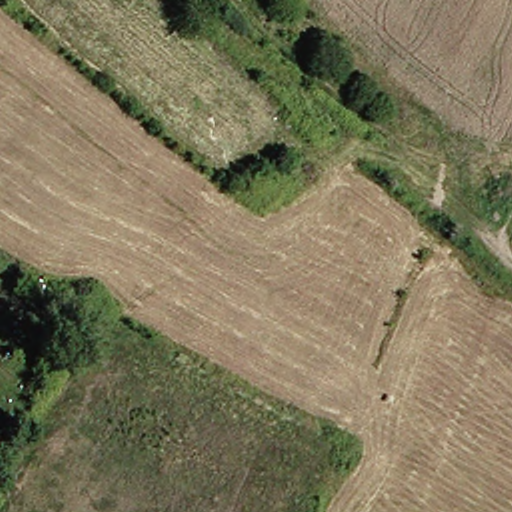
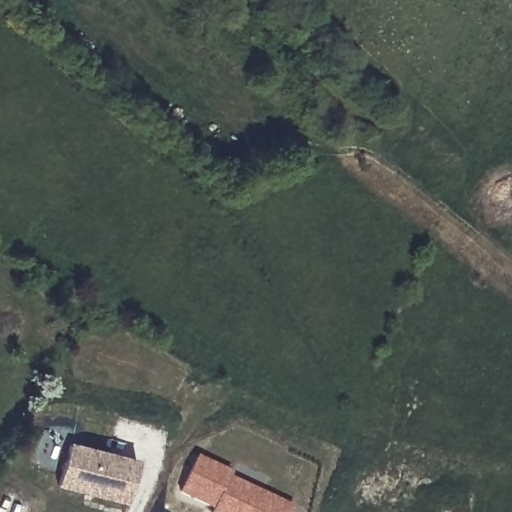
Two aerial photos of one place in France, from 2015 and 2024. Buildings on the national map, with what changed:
new [(69,482),(79,442),(147,459),(136,499),(69,482)]
new [(292,512),(212,512),(213,511),(178,494),(195,457),(231,474),(229,478),(293,509),(292,512)]

